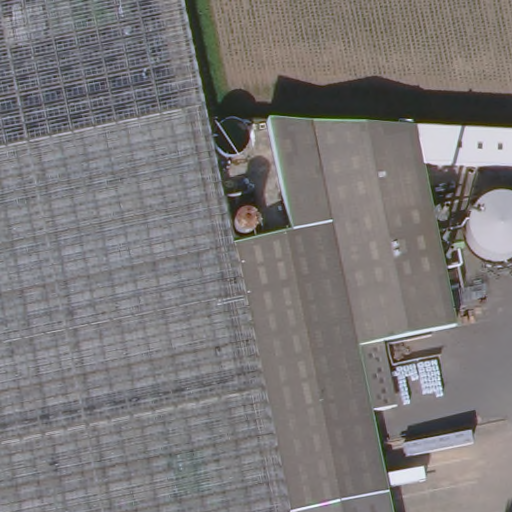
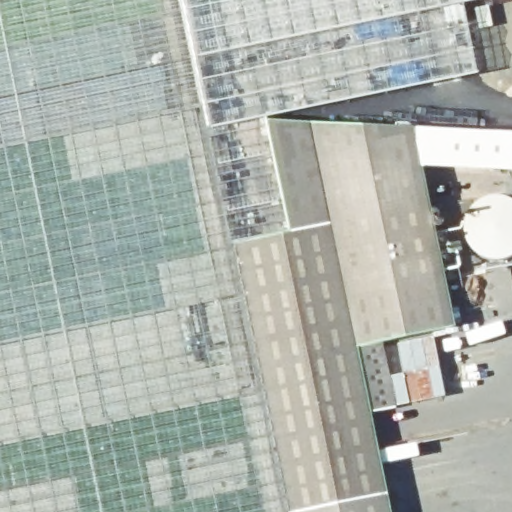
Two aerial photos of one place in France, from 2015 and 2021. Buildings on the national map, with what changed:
unchanged [(222,202),(286,512),(0,512),(0,0),(180,0),(222,202)]
new [(261,242),(253,216),(248,197),(222,202),(207,129),(180,0),(486,0),(464,5),(478,73),(263,118),(266,124),(289,236),(261,242)]
unchanged [(248,197),(253,216),(261,242),(289,236),(266,124),(414,128),(455,330),(355,349),(389,512),(286,512),(222,202),(248,197)]
unchanged [(512,132),(512,171),(421,166),(414,128),(512,132)]
unchanged [(355,349),(383,344),(396,406),(368,411),(355,349)]

